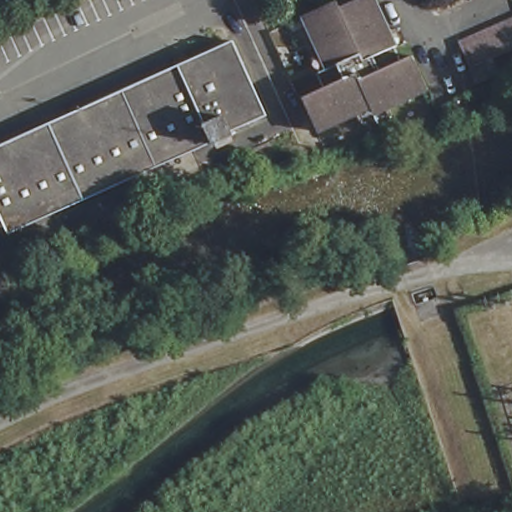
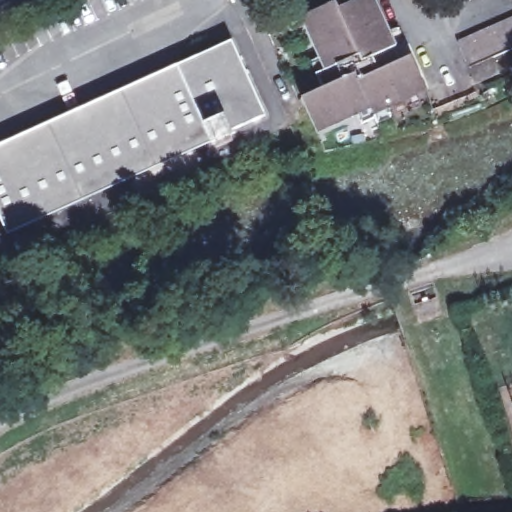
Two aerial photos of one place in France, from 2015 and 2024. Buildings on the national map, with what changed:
unchanged [(334,5),(338,14),(367,0),(394,64),(406,58),(420,94),(366,116),(363,109),(306,134),(293,101),(316,91),(310,74),(320,71),(299,21),(334,5)]
unchanged [(512,55),(496,61),(504,79),(476,90),(457,44),(512,21),(512,55)]
unchanged [(174,64),(232,40),(263,115),(229,130),(232,139),(209,147),(202,133),(0,214),(0,152),(179,75),(174,64)]

